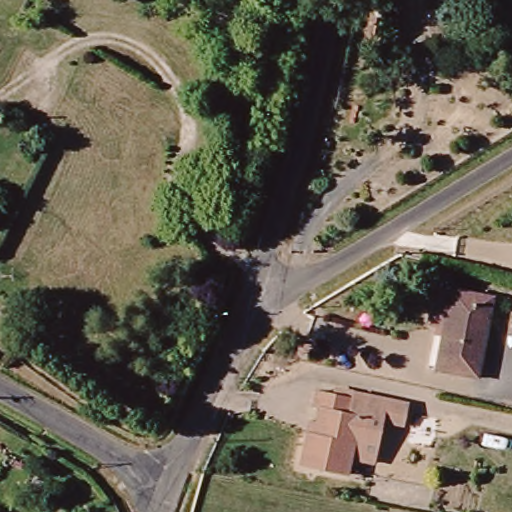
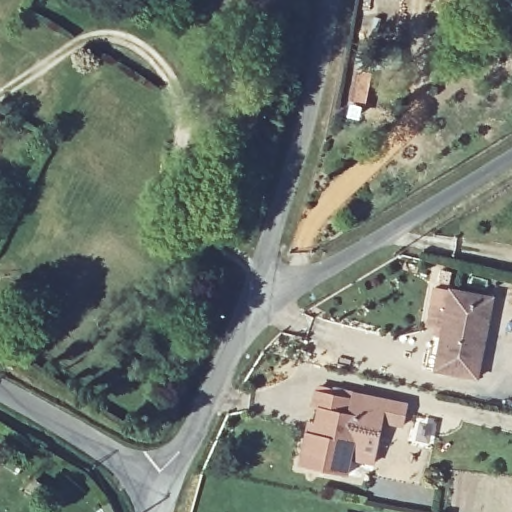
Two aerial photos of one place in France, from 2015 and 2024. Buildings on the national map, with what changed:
unchanged [(494,298),(479,381),(436,373),(444,331),(429,329),(435,290),(451,292),(451,291),(494,298)]
unchanged [(312,406),(316,390),(353,398),(354,393),(407,405),(403,427),(383,422),(379,438),(362,435),(360,445),(352,443),(344,477),(299,467),(306,432),(309,420),(317,421),(320,407),(312,406)]

